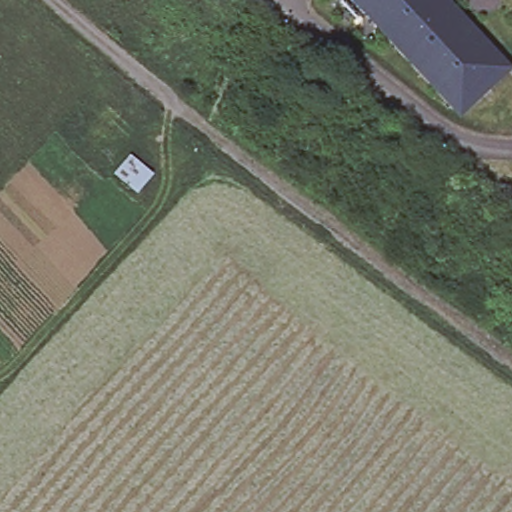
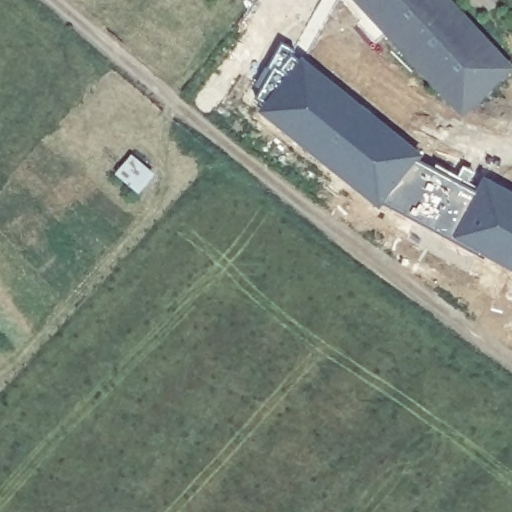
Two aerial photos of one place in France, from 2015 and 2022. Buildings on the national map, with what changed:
unchanged [(512,64),(510,66),(462,110),(460,112),(454,105),(391,37),(357,0),(453,0),(506,57),(512,64)]
new [(424,156),(417,164),(476,191),(482,179),(512,194),(512,269),(384,202),(380,206),(261,112),(302,61),(424,156)]
unchanged [(153,176),(138,192),(119,174),(134,158),(153,176)]

